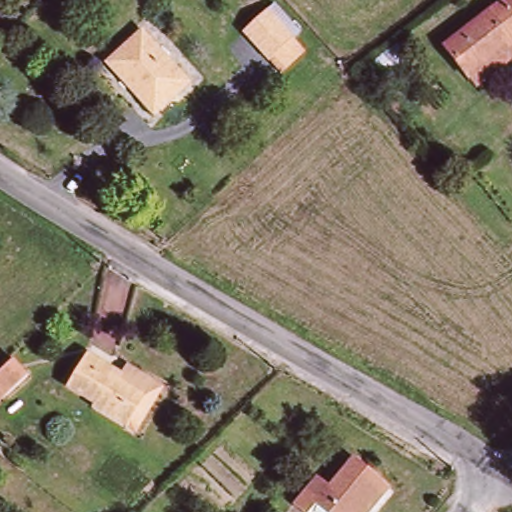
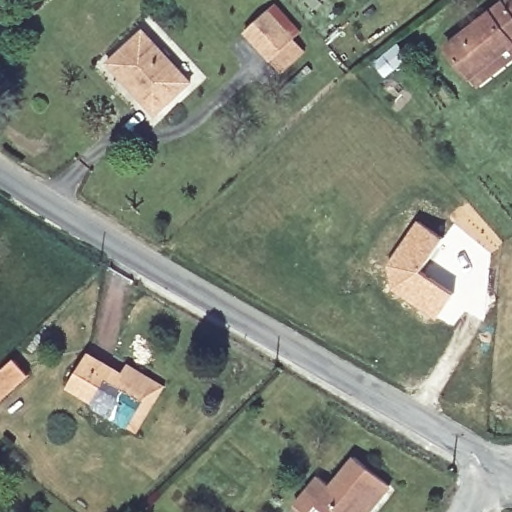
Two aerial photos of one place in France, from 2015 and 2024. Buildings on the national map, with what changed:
unchanged [(474,77),(451,50),(511,0),(512,0),(512,58),(480,84),(474,77)]
unchanged [(302,44),(278,65),(256,40),(281,20),(302,44)]
unchanged [(148,35),(194,85),(156,120),(144,109),(150,102),(117,65),(148,35)]
unchanged [(396,55),(410,45),(418,56),(404,66),(396,55)]
new [(419,223),(442,238),(420,271),(453,294),(437,316),(394,288),(389,265),(419,223)]
unchanged [(135,435),(107,415),(110,409),(81,386),(102,360),(131,379),(129,384),(158,406),(135,435)]
unchanged [(24,370),(35,382),(10,404),(0,393),(0,391),(24,370)]
unchanged [(339,491),(362,462),(396,489),(377,512),(327,512),(324,510),(322,512),(310,512),(303,506),(323,480),(339,491)]

